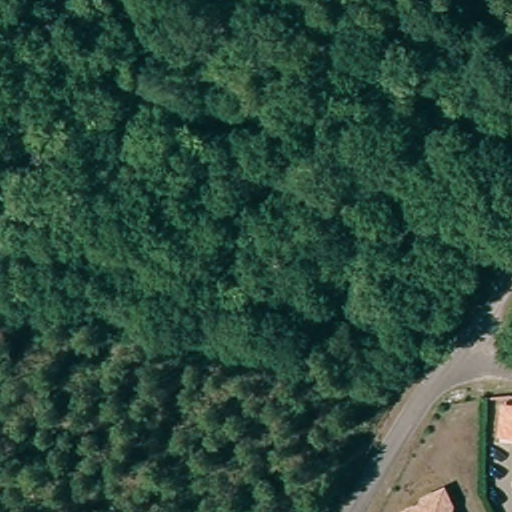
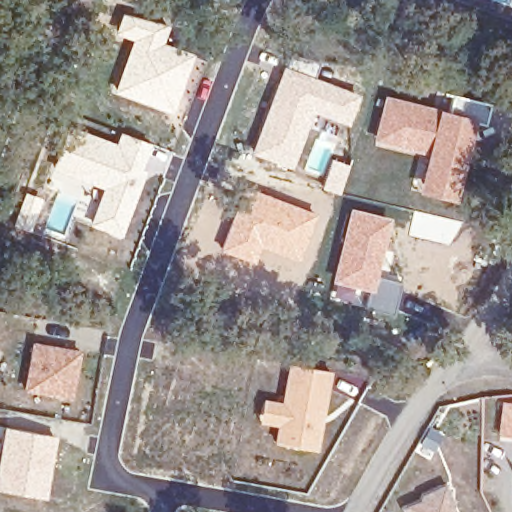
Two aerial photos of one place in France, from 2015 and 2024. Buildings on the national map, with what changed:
new [(131,40),(114,33),(121,12),(168,25),(164,42),(195,53),(172,115),(112,92),(131,40)]
new [(276,85),(289,54),(317,64),(313,76),(359,95),(348,126),(312,113),(290,168),(252,153),(276,85)]
new [(446,110),(451,94),(491,103),(486,126),(477,124),(457,202),(417,192),(426,155),(372,141),(385,95),(446,110)]
new [(69,125),(115,142),(120,131),(147,142),(144,150),(147,151),(138,191),(121,237),(89,224),(101,190),(70,180),(66,188),(72,191),(72,195),(47,185),(69,125)]
new [(331,158),(350,165),(341,194),(322,188),(331,158)]
new [(229,223),(246,186),(316,213),(296,262),(260,247),(255,263),(220,249),(229,223)]
new [(25,191),(42,198),(30,230),(12,224),(25,191)]
new [(349,207),(391,217),(380,268),(371,293),(366,292),(362,308),(328,299),(349,207)]
new [(366,292),(371,293),(380,268),(384,269),(382,275),(404,281),(395,317),(362,308),(366,292)]
new [(32,340),(80,350),(71,398),(23,388),(32,340)]
new [(263,397),(280,400),(287,363),(332,371),(316,450),(273,442),(275,426),(258,423),(263,397)]
unchanged [(509,405),(512,405),(512,435),(506,435),(509,405)]
new [(45,498),(0,490),(0,426),(57,436),(45,498)]
unchanged [(421,505),(424,497),(446,488),(452,503),(450,509),(451,512),(407,512),(406,511),(421,505)]

